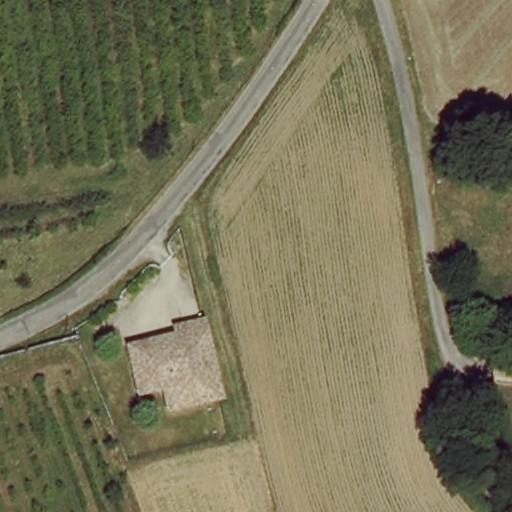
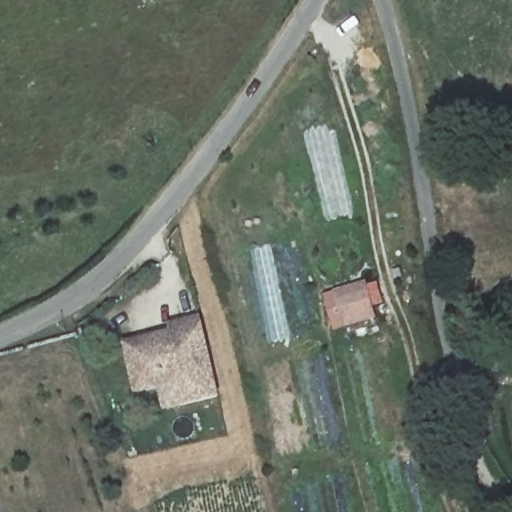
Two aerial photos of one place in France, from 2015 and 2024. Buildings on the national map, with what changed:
new [(367,280),(368,283),(380,280),(387,302),(374,307),(377,317),(334,330),(323,293),(367,280)]
unchanged [(180,339),(183,347),(195,344),(191,328),(206,324),(227,401),(186,412),(176,379),(151,385),(142,349),(180,339)]
unchanged [(151,385),(176,379),(186,412),(173,415),(167,393),(143,398),(132,351),(142,349),(151,385)]

